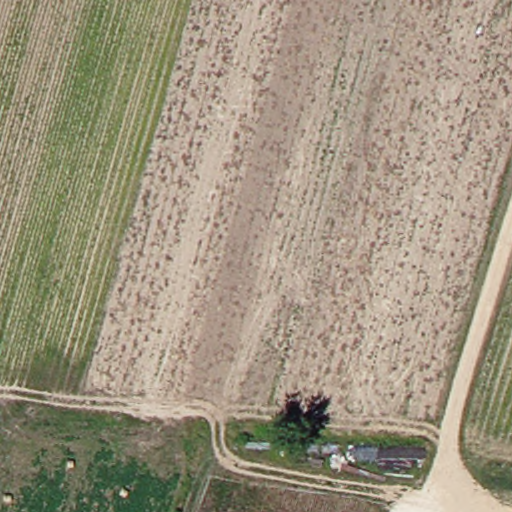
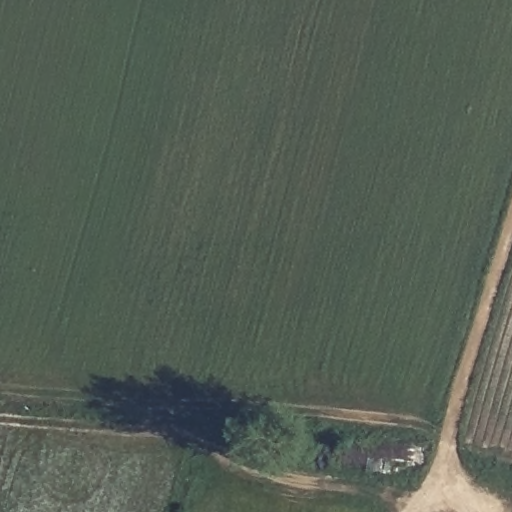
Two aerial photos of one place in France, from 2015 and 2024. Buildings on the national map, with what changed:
[]

